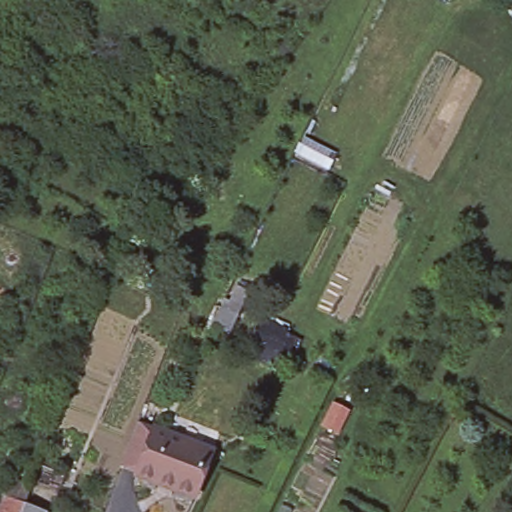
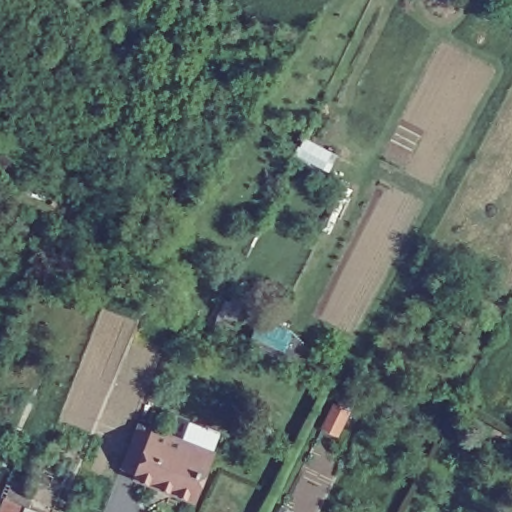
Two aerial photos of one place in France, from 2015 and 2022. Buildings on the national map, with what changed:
unchanged [(134,475),(154,426),(216,453),(196,499),(134,475)]
unchanged [(25,504),(44,512),(0,512),(6,497),(25,504)]

